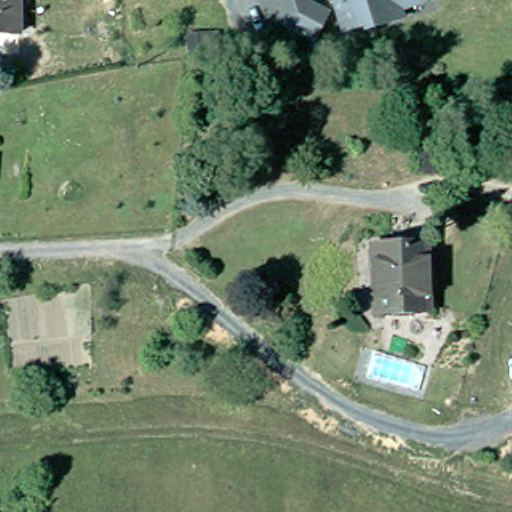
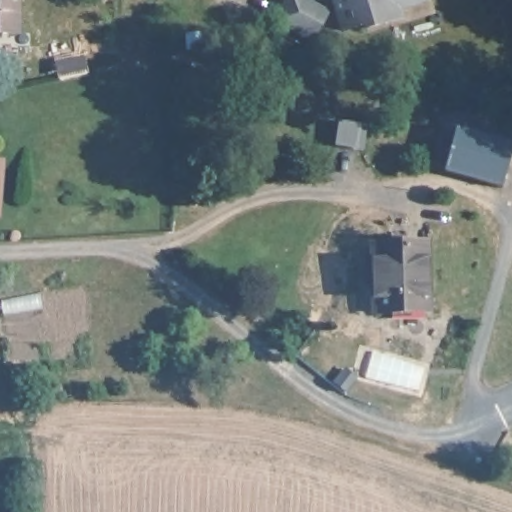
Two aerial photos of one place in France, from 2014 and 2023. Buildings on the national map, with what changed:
unchanged [(20,38),(0,38),(0,0),(21,0),(20,38)]
unchanged [(274,18),(283,0),(304,0),(322,10),(308,37),(274,18)]
unchanged [(388,20),(361,28),(360,24),(338,30),(329,0),(421,0),(421,1),(396,8),(399,17),(388,20)]
unchanged [(196,40),(197,55),(180,57),(178,41),(196,40)]
new [(512,143),(512,147),(501,187),(444,172),(453,128),(512,143)]
new [(5,157),(1,218),(0,218),(0,157),(5,157)]
unchanged [(375,247),(430,244),(434,312),(380,316),(375,247)]

